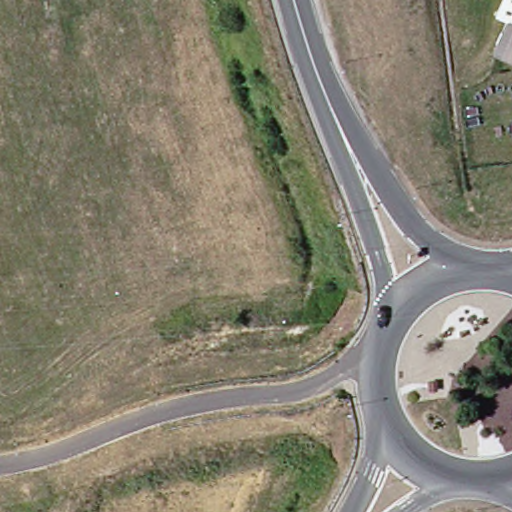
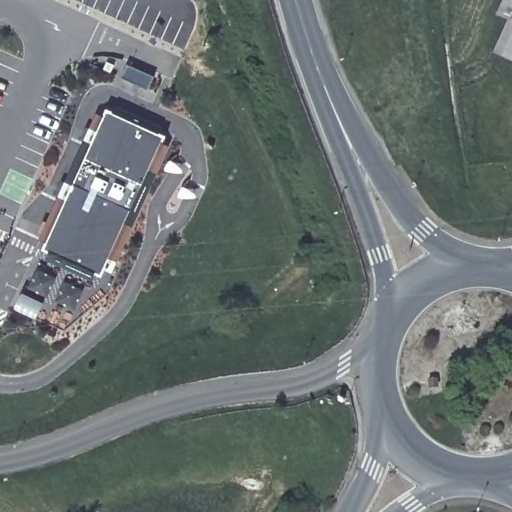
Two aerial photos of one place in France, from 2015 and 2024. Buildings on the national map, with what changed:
unchanged [(512,58),(503,54),(512,31),(512,58)]
new [(128,65),(153,77),(148,90),(121,77),(128,65)]
new [(47,249),(40,246),(92,118),(100,121),(103,114),(109,116),(112,110),(159,130),(156,136),(163,140),(160,146),(108,274),(105,281),(98,278),(96,286),(48,265),(51,259),(44,256),(47,249)]
new [(160,146),(167,150),(115,277),(108,274),(160,146)]

